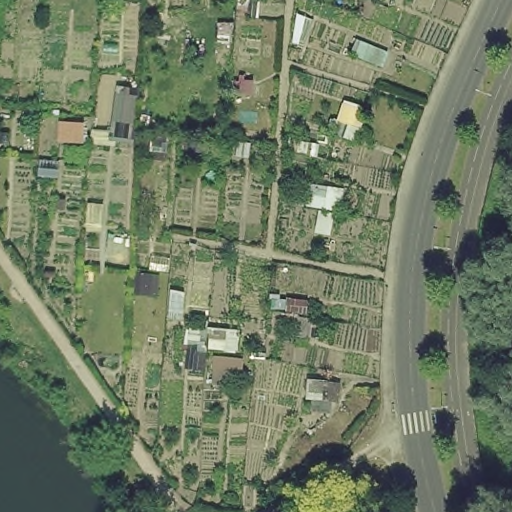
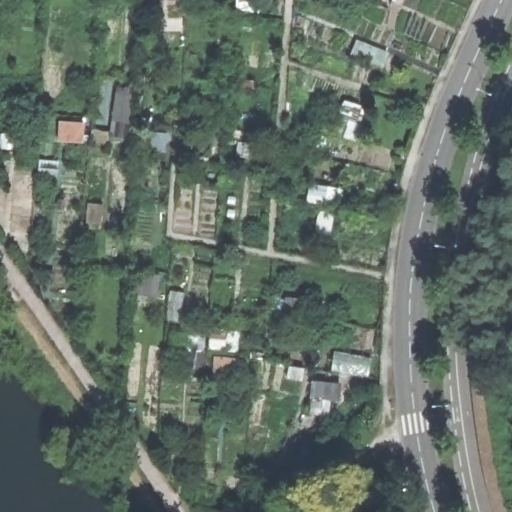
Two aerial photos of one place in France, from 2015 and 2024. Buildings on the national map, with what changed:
unchanged [(143,96),(135,144),(113,143),(118,92),(143,96)]
unchanged [(339,189),(336,236),(317,237),(318,209),(304,209),(309,186),(339,189)]
unchanged [(346,380),(344,404),(304,402),(305,375),(346,380)]

